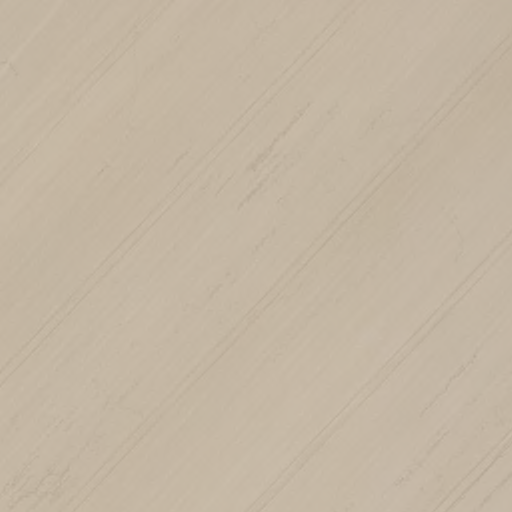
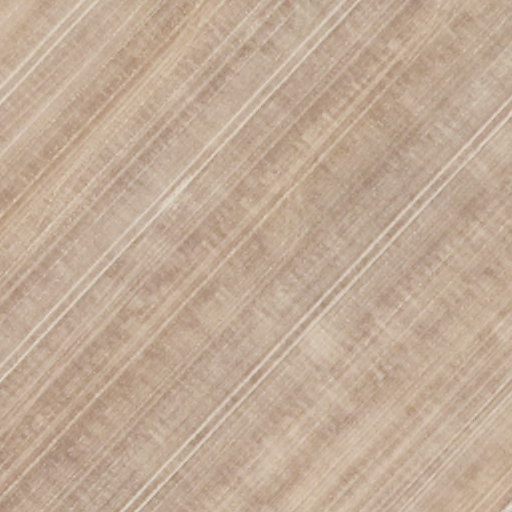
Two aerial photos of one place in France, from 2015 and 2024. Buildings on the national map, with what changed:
[]

